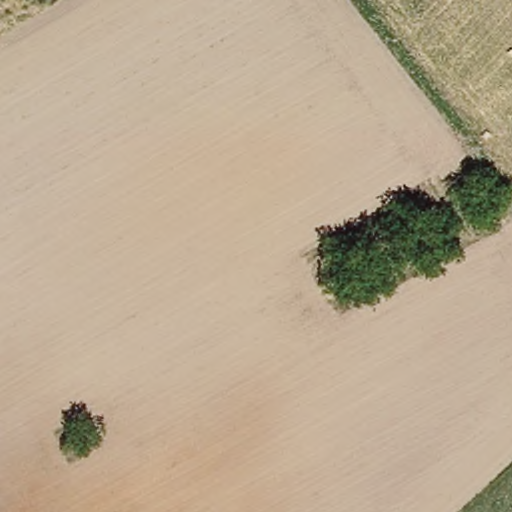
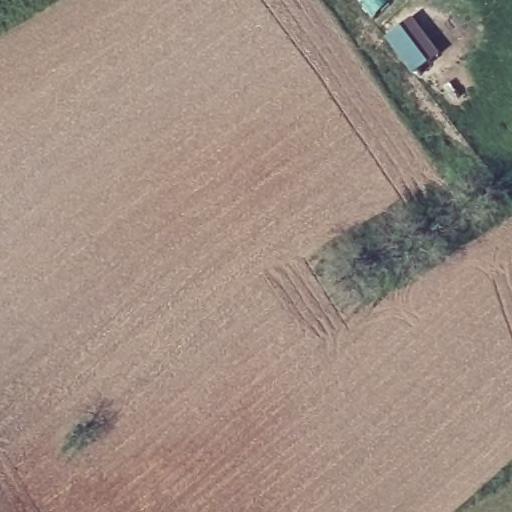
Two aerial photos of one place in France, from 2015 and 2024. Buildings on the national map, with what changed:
new [(442,52),(415,73),(388,37),(415,17),(442,52)]

